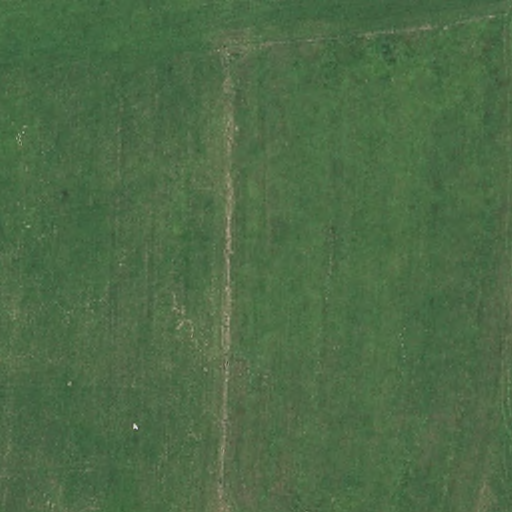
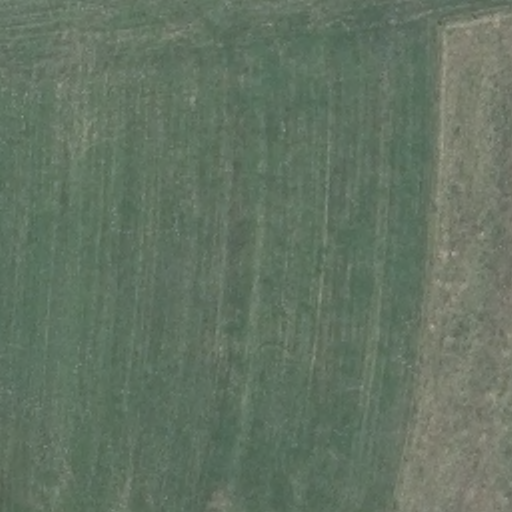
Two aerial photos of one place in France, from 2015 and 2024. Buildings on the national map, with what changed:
[]

